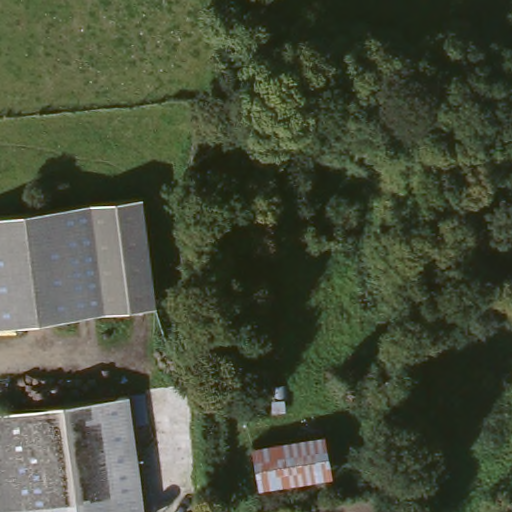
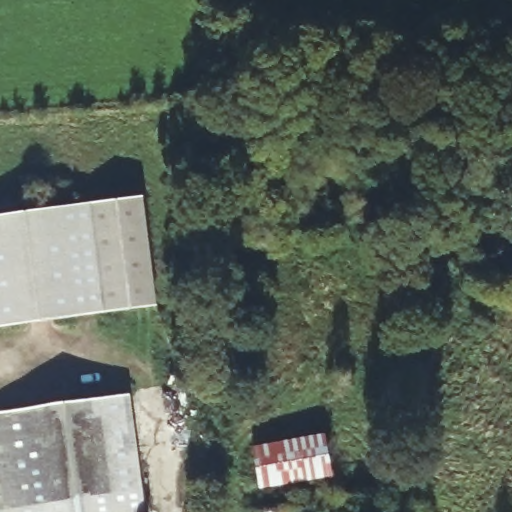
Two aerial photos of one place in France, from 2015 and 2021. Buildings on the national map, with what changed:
unchanged [(89,208),(142,202),(159,313),(104,322),(89,208)]
unchanged [(104,322),(0,336),(0,221),(89,208),(104,322)]
unchanged [(0,424),(121,402),(142,512),(0,512),(0,424)]
unchanged [(252,496),(248,456),(319,445),(324,484),(252,496)]

